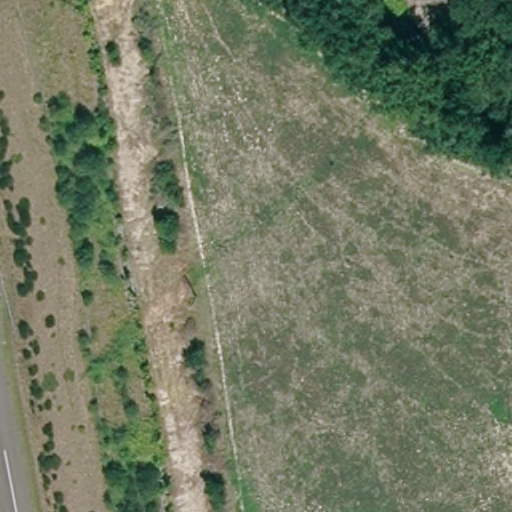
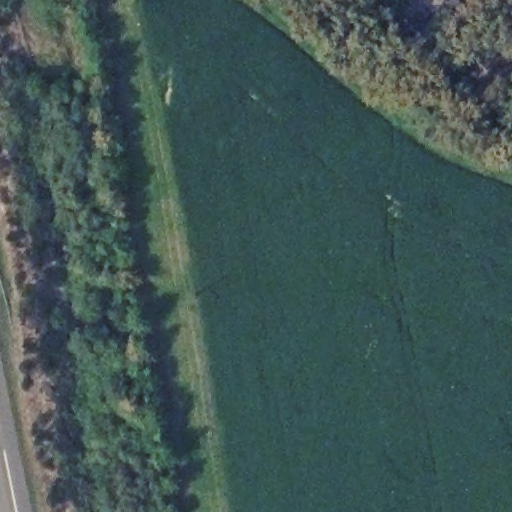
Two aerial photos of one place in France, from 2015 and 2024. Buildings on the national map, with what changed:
unchanged [(451,35),(425,0),(457,0),(471,19),(451,35)]
unchanged [(436,52),(421,68),(389,34),(405,18),(436,52)]

